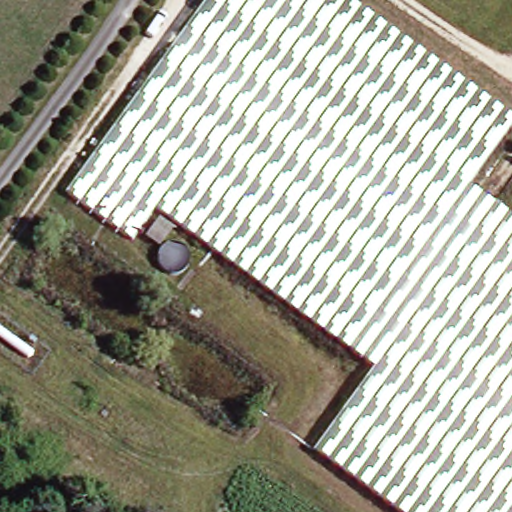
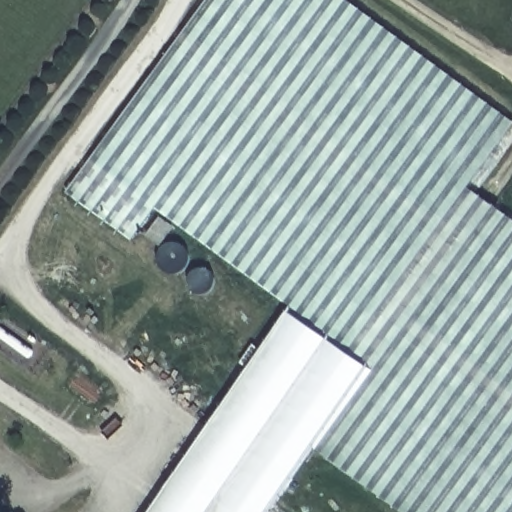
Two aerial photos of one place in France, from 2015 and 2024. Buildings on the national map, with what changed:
unchanged [(300,429),(348,372),(158,228),(137,254),(83,212),(245,0),(343,0),(509,124),(472,174),(504,199),(321,446),(300,429)]
unchanged [(512,512),(399,512),(318,450),(321,446),(504,199),(512,205),(512,512)]
new [(300,429),(316,442),(266,512),(150,512),(281,321),(348,372),(300,429)]

